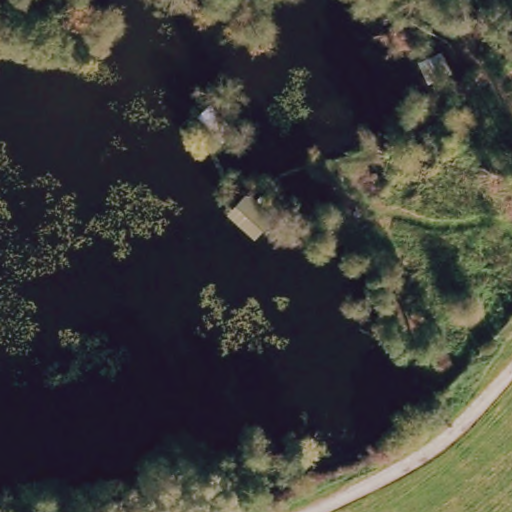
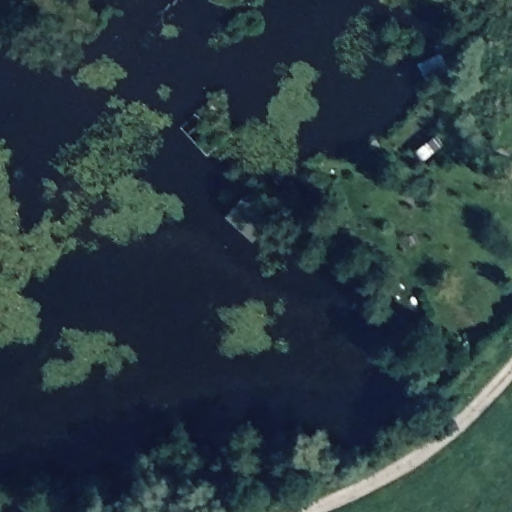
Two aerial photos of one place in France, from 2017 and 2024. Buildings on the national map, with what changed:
unchanged [(210,146),(185,121),(195,111),(220,136),(210,146)]
unchanged [(250,236),(225,211),(239,198),(263,223),(254,232),(250,236)]

